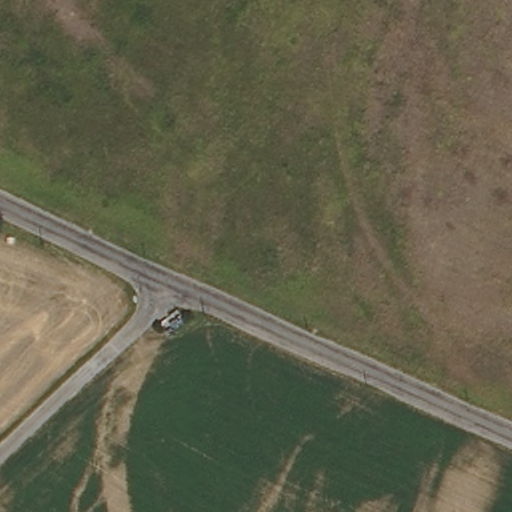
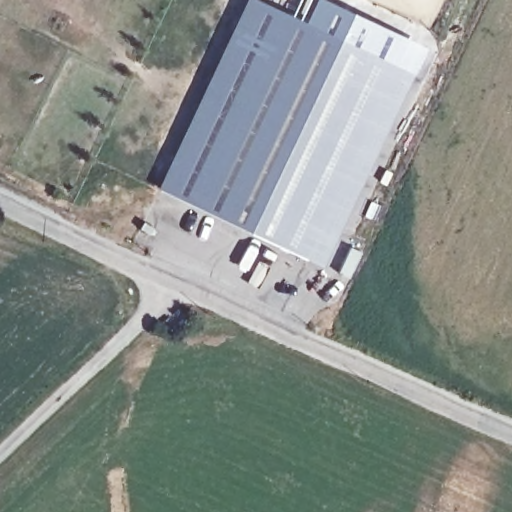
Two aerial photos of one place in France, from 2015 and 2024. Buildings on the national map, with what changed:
new [(257,0),(412,74),(321,266),(158,189),(245,0),(257,0)]

